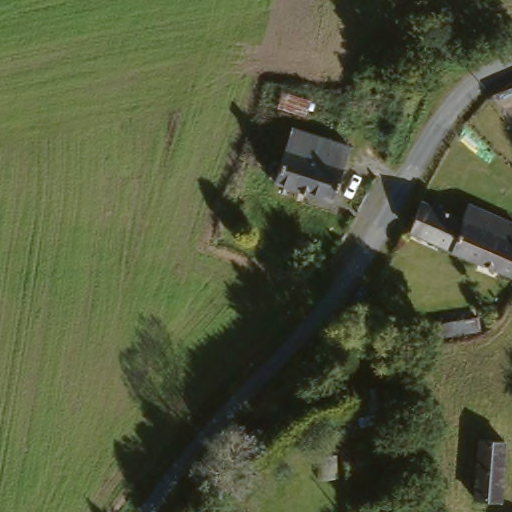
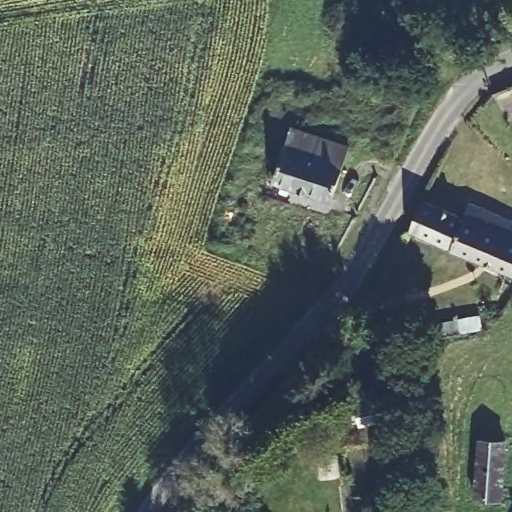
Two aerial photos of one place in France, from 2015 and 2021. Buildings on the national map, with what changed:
unchanged [(272,182),(290,130),(345,147),(337,165),(327,200),(272,182)]
unchanged [(411,239),(423,210),(463,225),(471,212),(512,227),(512,283),(411,239)]
unchanged [(501,310),(495,317),(485,309),(495,299),(505,305),(501,310)]
unchanged [(438,339),(437,327),(477,319),(480,329),(438,339)]
unchanged [(475,447),(499,447),(499,504),(472,504),(475,447)]

